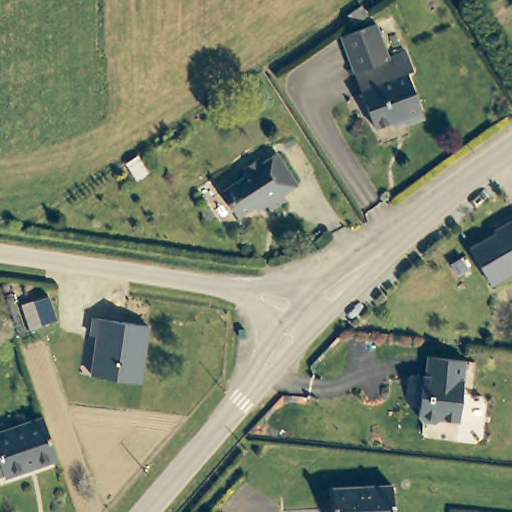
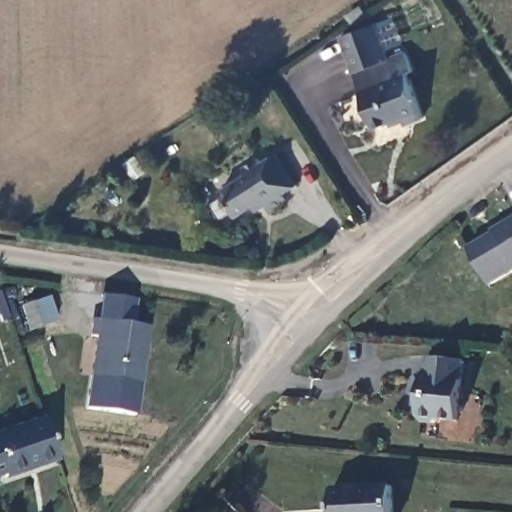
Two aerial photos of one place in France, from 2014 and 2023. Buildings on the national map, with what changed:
unchanged [(410,75),(425,119),(407,125),(405,121),(376,130),(347,35),(379,25),(390,59),(410,52),(417,74),(410,75)]
unchanged [(266,206),(256,213),(254,210),(237,221),(222,196),(249,180),(243,171),(260,160),(264,165),(277,156),(299,191),(282,201),(286,207),(272,216),(266,206)]
unchanged [(469,251),(500,233),(497,228),(512,220),(512,275),(489,288),(469,251)]
unchanged [(33,325),(26,302),(38,298),(45,321),(33,325)]
unchanged [(142,382),(90,376),(96,336),(89,335),(93,317),(150,325),(142,382)]
unchanged [(438,422),(416,420),(418,400),(413,400),(415,375),(424,376),(425,355),(462,360),(457,420),(438,418),(438,422)]
unchanged [(59,459),(0,480),(0,434),(44,418),(59,459)]
unchanged [(394,485),(396,512),(335,512),(334,487),(394,485)]

